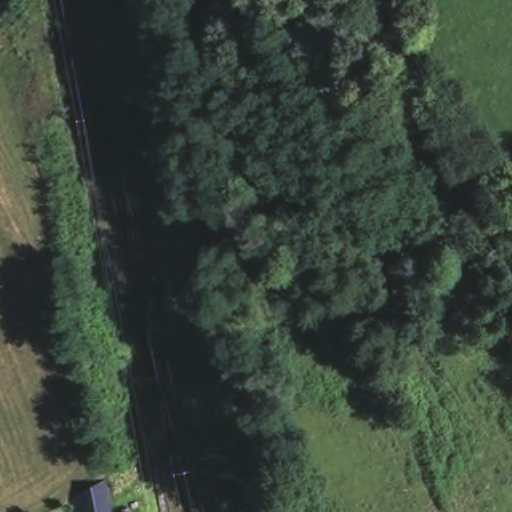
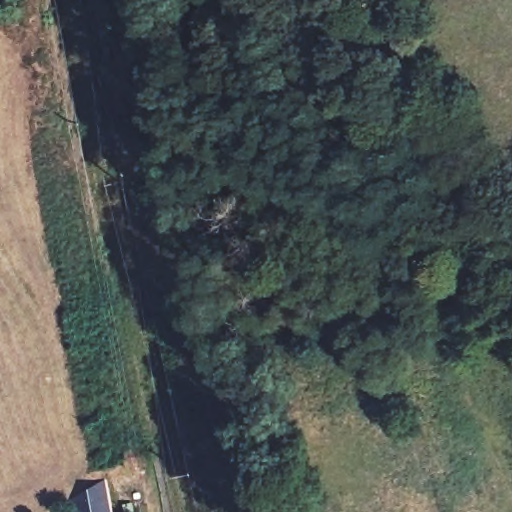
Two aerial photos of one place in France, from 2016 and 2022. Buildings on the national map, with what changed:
unchanged [(74,512),(71,502),(105,481),(112,512),(74,512)]

